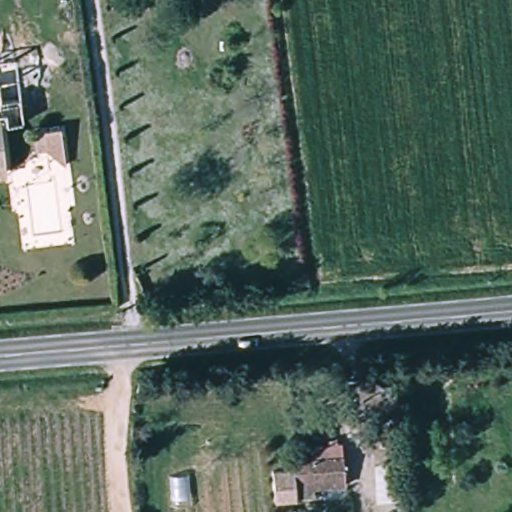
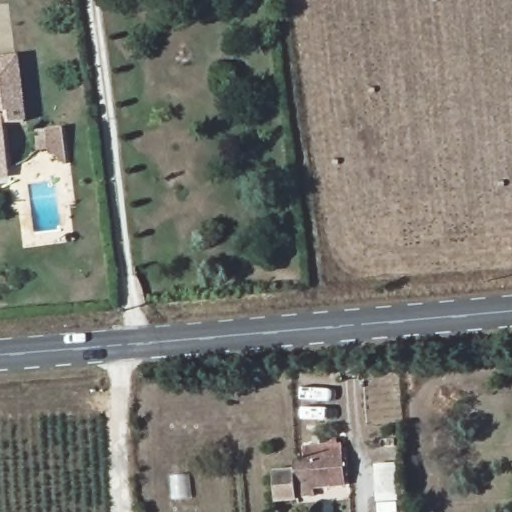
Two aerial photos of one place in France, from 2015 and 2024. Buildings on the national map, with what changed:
new [(17,56),(25,121),(2,123),(0,123),(0,57),(17,56)]
unchanged [(8,180),(0,181),(0,123),(2,123),(8,180)]
unchanged [(44,148),(33,149),(32,131),(42,130),(44,148)]
unchanged [(342,489),(312,491),(312,500),(295,501),(292,462),(302,462),(301,449),(338,446),(342,489)]

